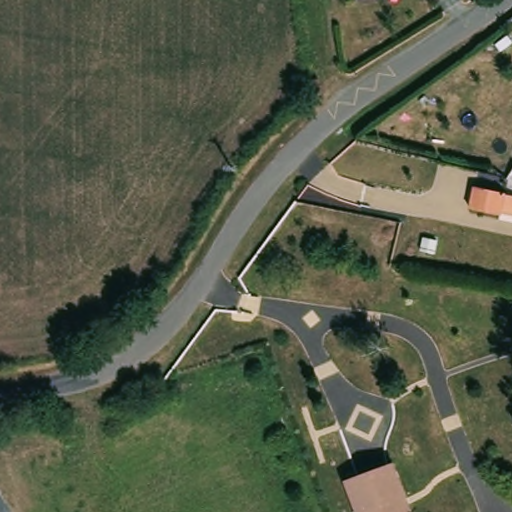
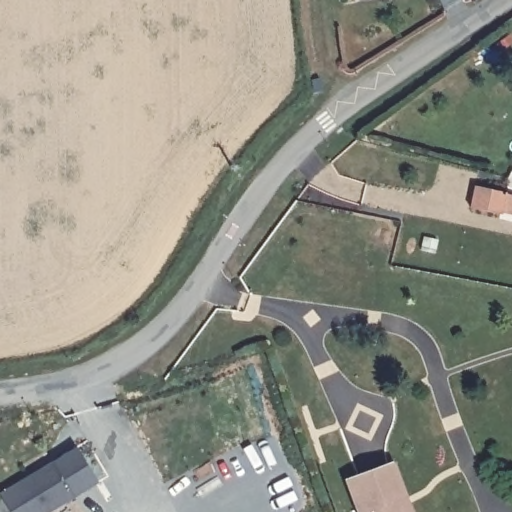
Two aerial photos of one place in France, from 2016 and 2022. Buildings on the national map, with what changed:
unchanged [(507,195),(499,219),(469,210),(476,184),(507,195)]
new [(0,492),(76,447),(98,482),(50,512),(10,512),(0,495),(0,492)]
unchanged [(415,512),(361,512),(349,478),(395,460),(415,512)]

